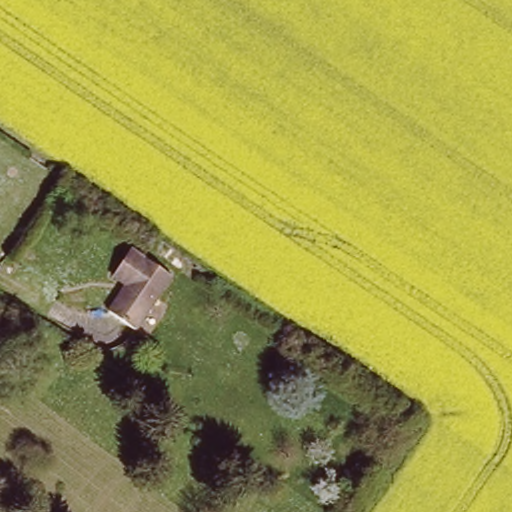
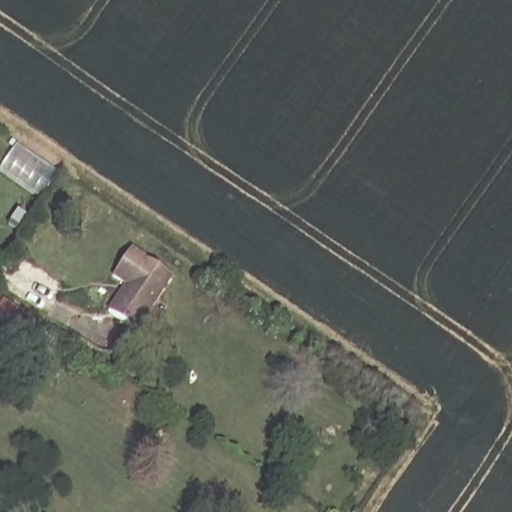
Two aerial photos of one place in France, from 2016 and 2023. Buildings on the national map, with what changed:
unchanged [(130,249),(170,277),(135,327),(108,308),(125,285),(111,275),(130,249)]

